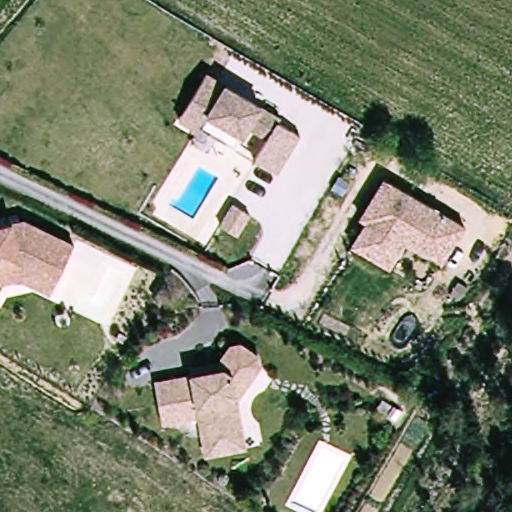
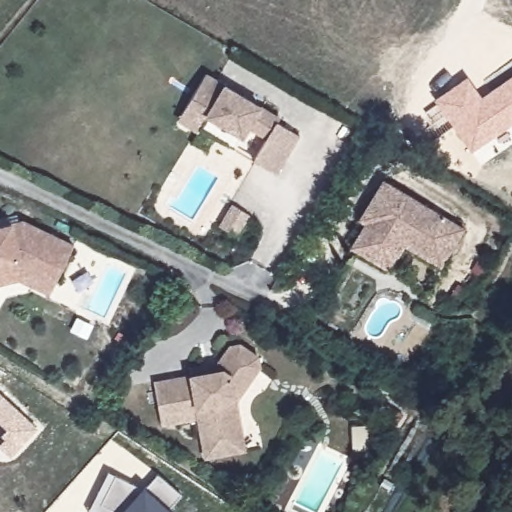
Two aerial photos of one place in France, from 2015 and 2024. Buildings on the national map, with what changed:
unchanged [(200,129),(198,131),(178,120),(207,75),(280,120),(277,124),(299,138),(275,176),(252,161),(267,139),(248,128),(242,138),(235,151),(200,129)]
new [(512,75),(512,124),(471,151),(452,125),(430,143),(412,119),(437,102),(435,98),(467,76),(482,96),(512,75)]
unchanged [(407,246),(393,271),(355,250),(370,225),(363,221),(385,181),(467,227),(455,249),(445,267),(407,246)]
unchanged [(247,216),(237,233),(215,220),(226,203),(247,216)]
unchanged [(0,283),(0,267),(0,226),(22,220),(70,244),(53,279),(47,292),(17,278),(0,283)]
unchanged [(204,456),(200,436),(197,417),(178,421),(160,424),(158,414),(152,380),(188,374),(187,366),(215,360),(227,344),(236,342),(255,354),(257,364),(234,399),(240,429),(244,448),(204,456)]
new [(10,457),(0,446),(0,392),(38,429),(10,457)]
new [(137,483),(142,488),(158,472),(182,493),(168,509),(173,512),(88,512),(87,512),(109,470),(137,483)]

